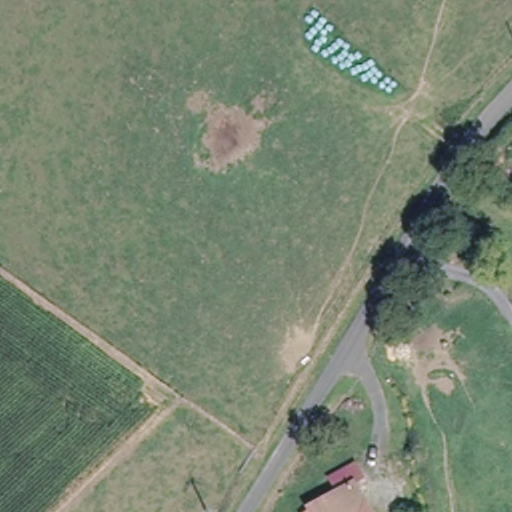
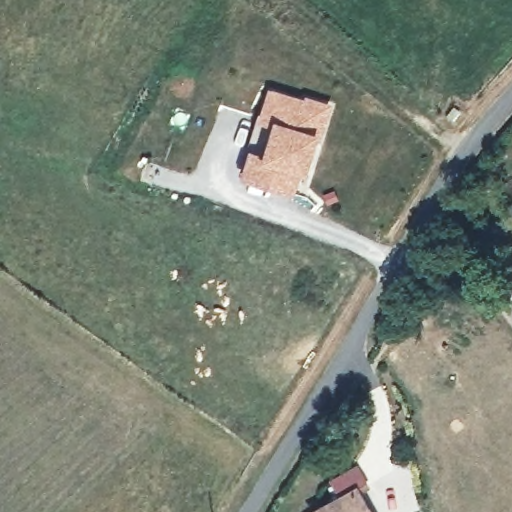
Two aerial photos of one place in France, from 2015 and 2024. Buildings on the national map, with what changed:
new [(302,98),(303,94),(331,103),(321,142),(315,140),(305,175),(299,173),(293,194),(238,177),(248,149),(260,153),(269,127),(257,123),(267,86),(302,98)]
unchanged [(347,496),(339,482),(355,472),(378,512),(318,512),(347,496)]

